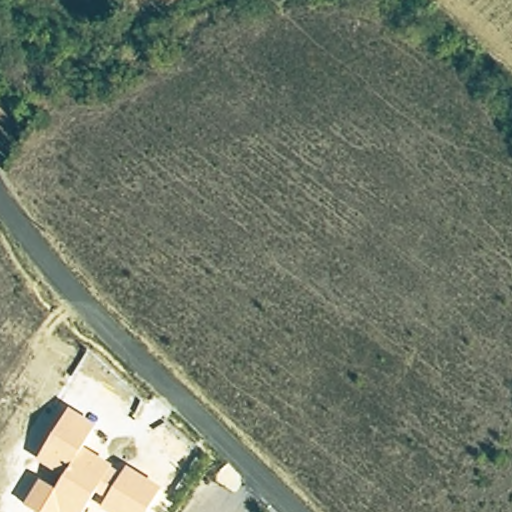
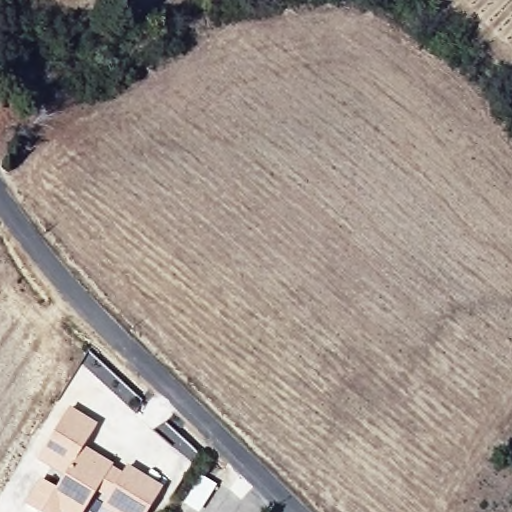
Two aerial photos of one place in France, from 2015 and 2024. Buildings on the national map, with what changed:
unchanged [(106,512),(101,509),(107,499),(96,492),(85,512),(35,512),(24,506),(40,479),(56,487),(62,476),(38,462),(70,407),(98,423),(85,447),(114,465),(113,468),(122,473),(126,466),(164,488),(149,512),(106,512)]

